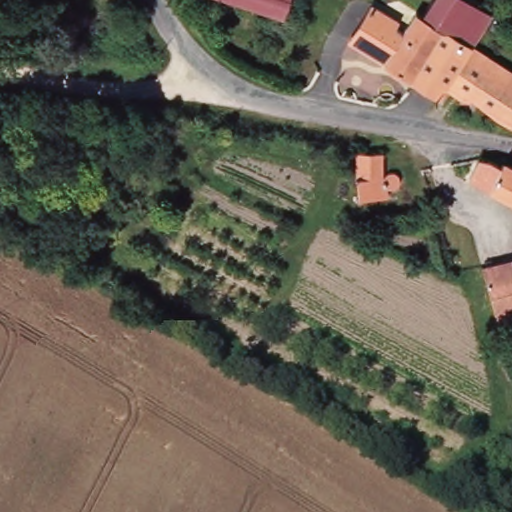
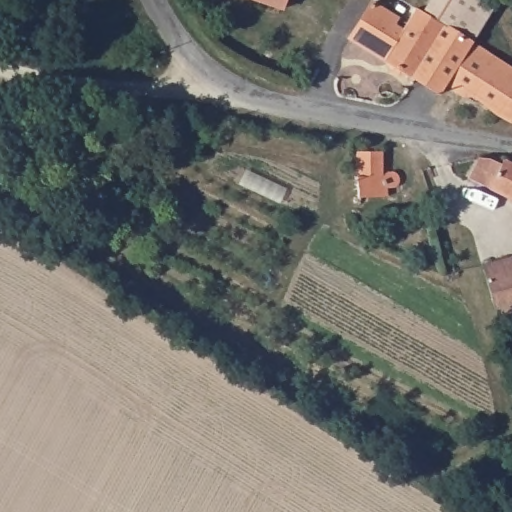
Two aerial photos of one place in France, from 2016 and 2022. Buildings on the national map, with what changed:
unchanged [(251,0),(283,0),(280,10),(251,0)]
unchanged [(408,25),(416,11),(422,14),(431,0),(473,0),(492,11),(471,44),(512,70),(512,121),(502,118),(447,81),(439,94),(349,39),(373,4),(408,25)]
unchanged [(379,155),(381,174),(403,171),(406,174),(407,190),(400,191),(399,199),(356,202),(356,198),(355,156),(379,155)]
unchanged [(468,180),(477,159),(501,166),(503,161),(512,166),(512,201),(468,180)]
unchanged [(496,325),(493,298),(492,283),(491,278),(485,279),(480,265),(487,264),(512,258),(512,322),(496,325)]

